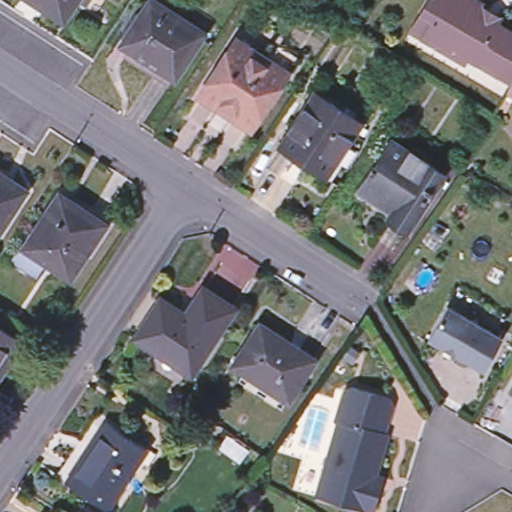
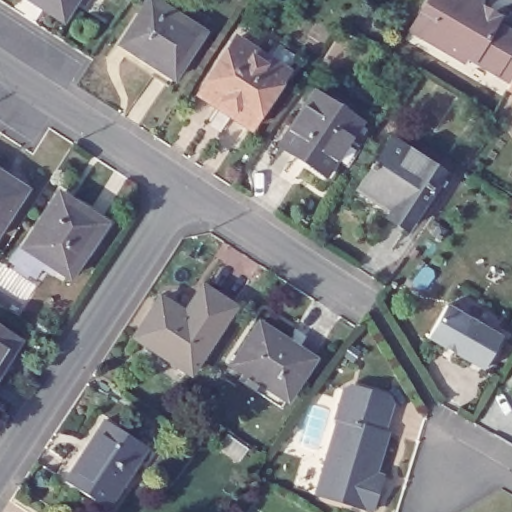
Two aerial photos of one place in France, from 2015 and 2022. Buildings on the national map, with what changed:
unchanged [(73,4),(59,24),(26,3),(29,0),(88,0),(82,9),(73,4)]
unchanged [(173,83),(119,49),(151,0),(164,0),(208,29),(173,83)]
unchanged [(506,80),(493,71),(463,55),(460,60),(418,35),(429,16),(418,10),(423,0),(479,0),(477,4),(495,14),(492,20),(512,32),(512,92),(502,86),(506,80)]
unchanged [(199,101),(236,45),(269,68),(279,52),(296,63),(286,79),(249,134),(199,101)]
unchanged [(326,177),(280,147),(315,94),(361,124),(326,177)]
unchanged [(444,175),(433,193),(431,191),(407,228),(389,217),(395,207),(361,185),(371,169),(370,168),(373,163),(375,165),(391,141),(444,175)]
unchanged [(0,232),(0,166),(30,186),(0,232)]
unchanged [(74,278),(29,248),(63,195),(109,225),(74,278)]
unchanged [(191,375),(134,339),(159,300),(183,316),(202,287),(234,308),(191,375)]
unchanged [(497,337),(479,369),(424,338),(442,306),(497,337)]
unchanged [(299,382),(298,381),(287,398),(234,364),(261,324),(315,358),(299,382)]
unchanged [(1,374),(0,373),(0,329),(21,344),(1,374)]
unchanged [(321,474),(326,456),(338,420),(334,419),(344,390),(351,386),(387,397),(391,404),(383,432),(387,433),(374,474),(381,476),(378,489),(371,511),(323,497),(316,495),(321,474)]
unchanged [(108,512),(65,484),(105,423),(148,450),(108,512)]

